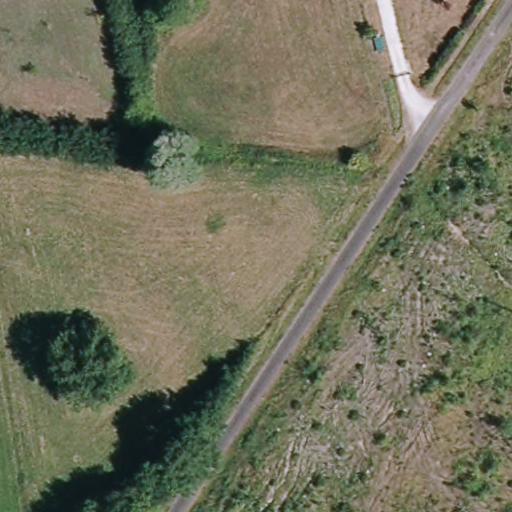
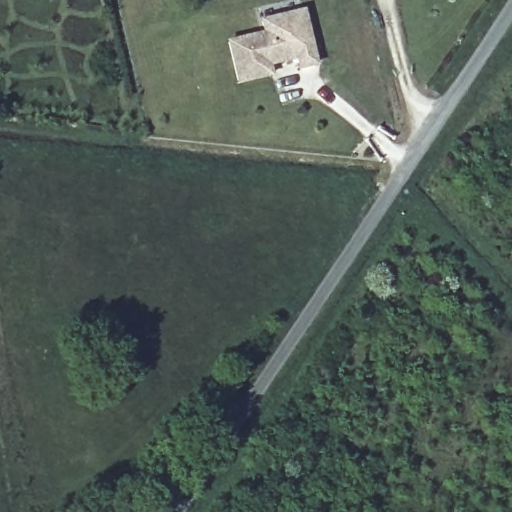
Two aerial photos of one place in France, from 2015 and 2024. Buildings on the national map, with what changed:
new [(261,34),(259,20),(304,9),(317,65),(298,70),(296,60),(272,66),(274,77),(236,86),(225,42),(261,34)]

